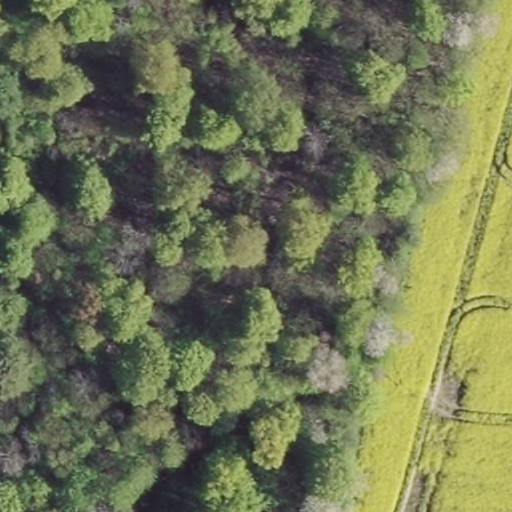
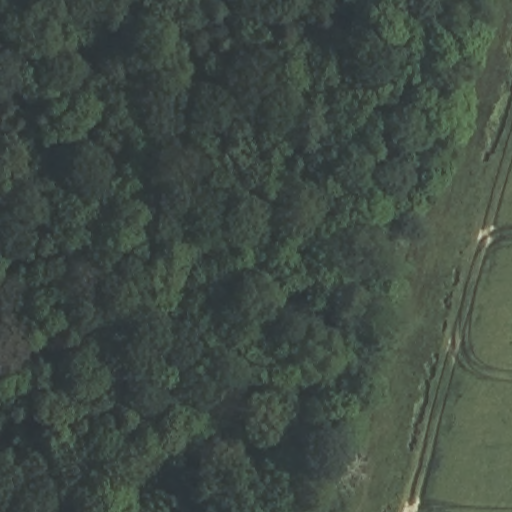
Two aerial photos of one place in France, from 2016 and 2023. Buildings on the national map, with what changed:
[]

